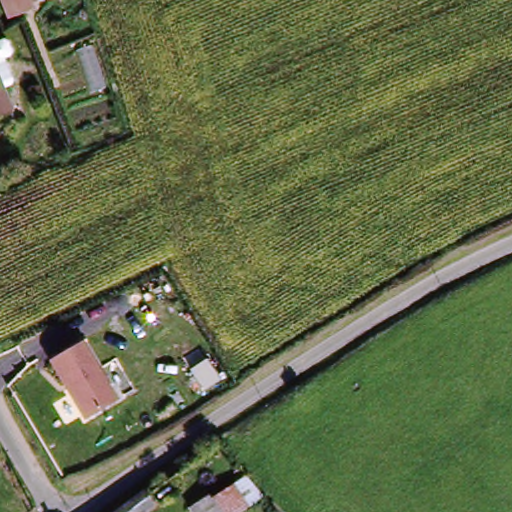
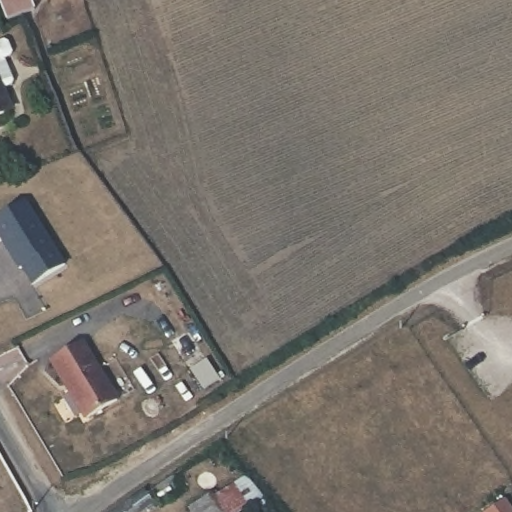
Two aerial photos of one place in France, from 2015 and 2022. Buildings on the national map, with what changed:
unchanged [(18,10),(9,14),(0,17),(0,0),(21,0),(15,2),(18,10)]
unchanged [(4,56),(0,57),(0,46),(4,56)]
unchanged [(7,85),(0,87),(0,68),(7,85)]
unchanged [(2,109),(0,109),(0,103),(2,109)]
new [(28,200),(69,265),(37,285),(25,268),(22,270),(0,234),(0,218),(28,200)]
unchanged [(48,363),(86,341),(120,399),(84,421),(48,363)]
new [(211,363),(223,385),(206,395),(194,372),(211,363)]
unchanged [(240,480),(254,497),(234,512),(217,512),(210,502),(240,480)]
unchanged [(152,501),(158,512),(136,512),(152,501)]

